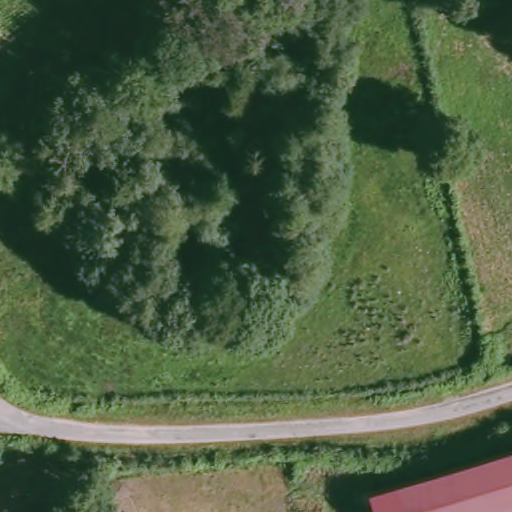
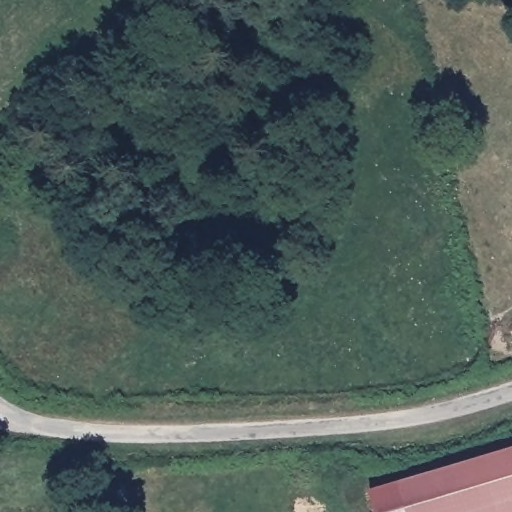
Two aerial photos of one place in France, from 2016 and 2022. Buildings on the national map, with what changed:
unchanged [(373,481),(512,440),(512,512),(380,512),(373,481)]

